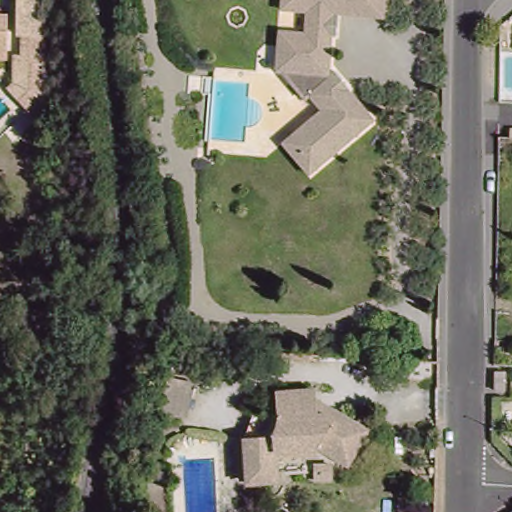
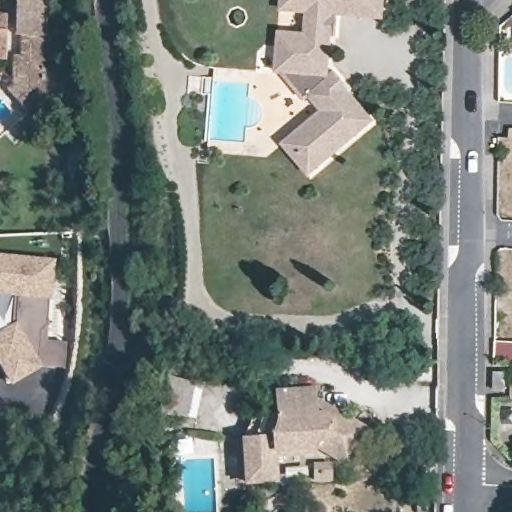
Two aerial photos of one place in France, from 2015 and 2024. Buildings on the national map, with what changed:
unchanged [(12,39),(13,0),(43,0),(43,39),(19,39),(12,39)]
unchanged [(306,95),(302,98),(280,70),(273,70),(277,30),(283,30),(303,32),(305,10),(286,7),(280,7),(281,0),(382,0),(380,17),(336,12),(335,36),(328,35),(323,81),(333,72),(345,87),(344,89),(370,120),(310,170),(305,174),(280,142),(285,139),(318,110),(306,95)]
unchanged [(6,60),(0,60),(0,17),(5,17),(6,60)]
unchanged [(41,121),(35,129),(7,95),(13,88),(12,62),(19,62),(19,39),(43,39),(41,121)]
new [(43,366),(17,383),(0,357),(0,340),(18,328),(18,295),(0,295),(0,261),(38,261),(51,262),(51,270),(50,325),(43,332),(43,341),(70,341),(70,366),(43,366)]
unchanged [(500,390),(493,390),(495,367),(500,367),(500,390)]
unchanged [(163,380),(191,383),(185,421),(153,417),(163,380)]
unchanged [(320,403),(341,415),(372,433),(351,467),(320,447),(277,450),(280,480),(255,481),(252,481),(249,436),(258,411),(265,413),(282,420),(280,391),(320,388),(320,403)]

